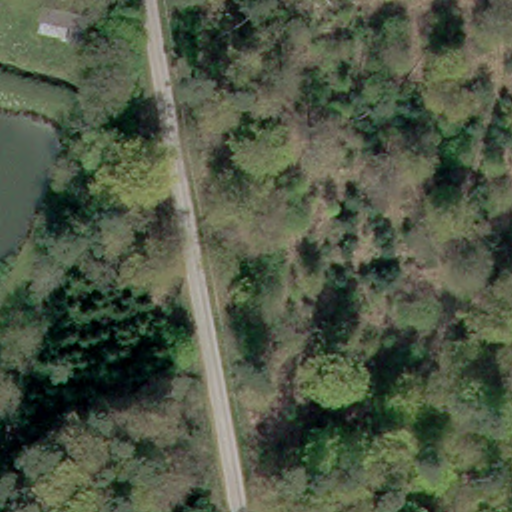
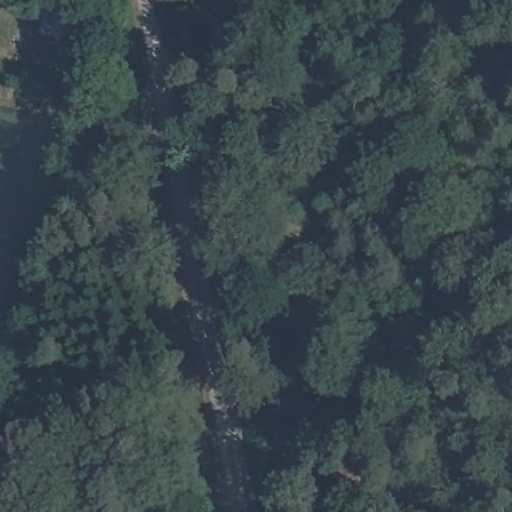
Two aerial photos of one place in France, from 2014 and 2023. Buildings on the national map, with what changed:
unchanged [(91,12),(92,34),(55,35),(54,14),(91,12)]

